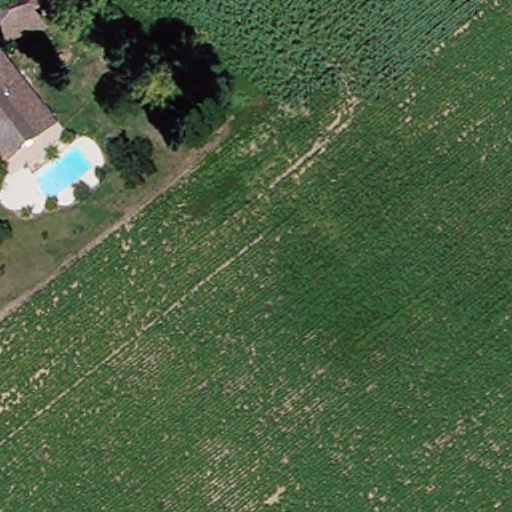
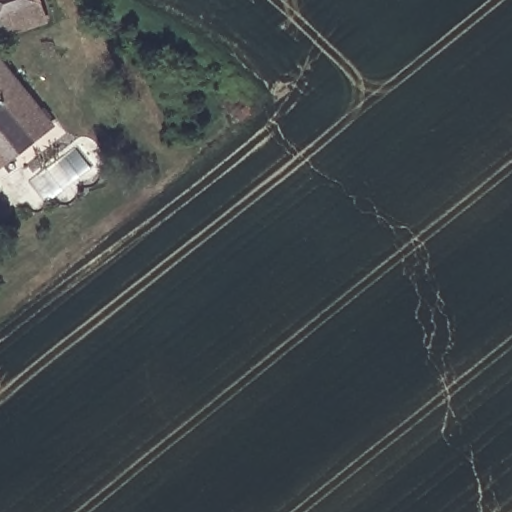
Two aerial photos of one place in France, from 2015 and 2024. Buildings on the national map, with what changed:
unchanged [(0,2),(0,0),(43,0),(47,14),(8,27),(0,2)]
unchanged [(16,146),(0,125),(0,50),(53,117),(16,146)]
unchanged [(0,125),(16,146),(0,159),(0,125)]

